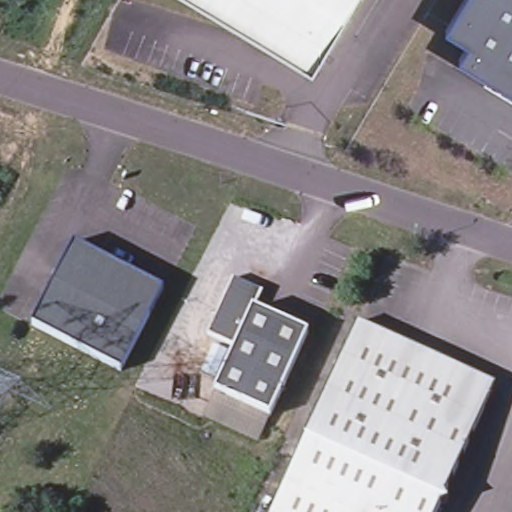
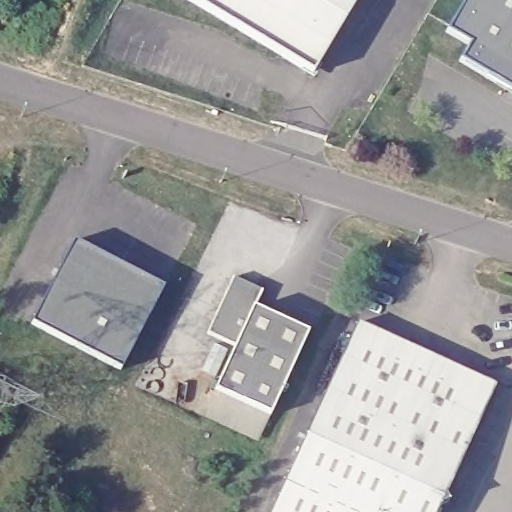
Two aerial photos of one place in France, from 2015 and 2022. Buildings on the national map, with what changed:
unchanged [(197,0),(353,0),(316,62),(305,64),(197,0)]
unchanged [(463,56),(472,40),(450,27),(466,0),(512,0),(512,85),(463,56)]
unchanged [(77,235),(101,248),(96,257),(105,262),(110,253),(135,266),(133,268),(142,272),(143,270),(167,282),(153,310),(63,263),(77,235)]
unchanged [(125,365),(34,318),(63,263),(153,310),(125,365)]
unchanged [(253,303),(306,328),(268,411),(212,386),(233,341),(205,328),(231,272),(261,286),(253,303)]
unchanged [(438,512),(269,512),(351,334),(355,323),(375,332),(495,387),(444,496),(447,503),(441,505),(438,512)]

